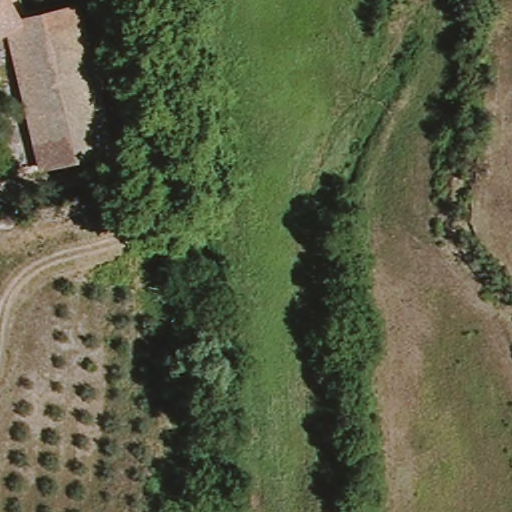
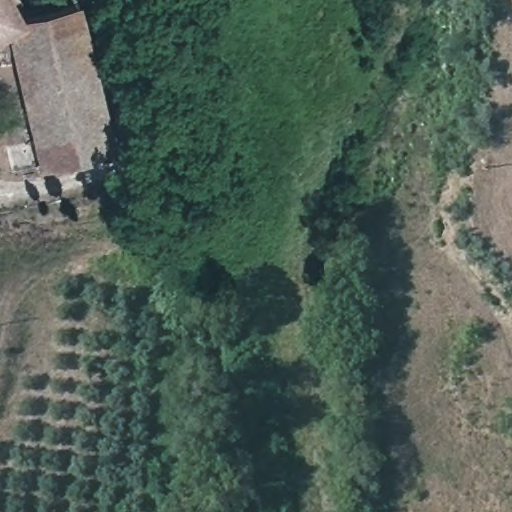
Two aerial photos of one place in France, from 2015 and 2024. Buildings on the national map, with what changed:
unchanged [(0,3),(6,31),(0,35),(0,3)]
unchanged [(72,15),(104,154),(9,177),(3,150),(29,144),(6,31),(72,15)]

